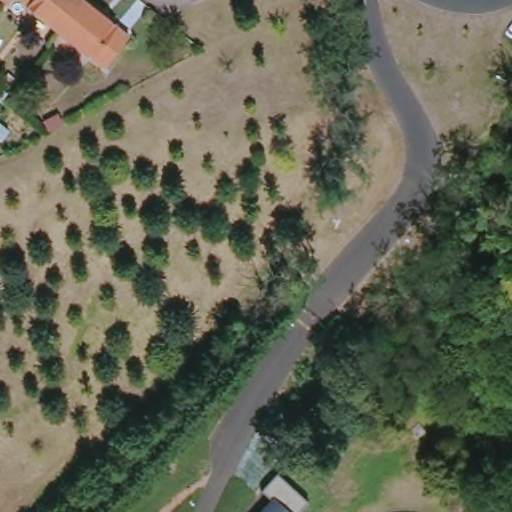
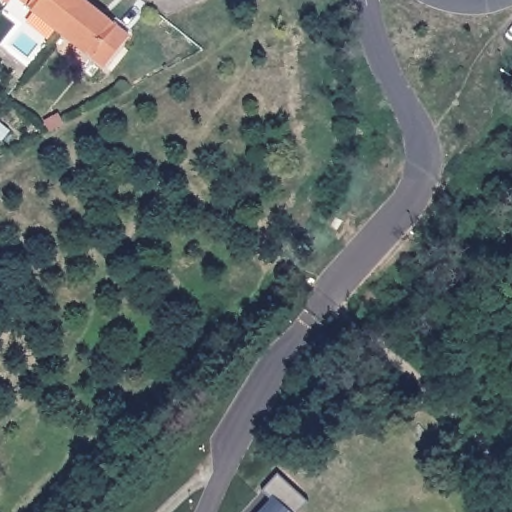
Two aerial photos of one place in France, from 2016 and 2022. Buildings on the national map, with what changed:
unchanged [(33,0),(86,0),(65,26),(33,0)]
unchanged [(94,0),(133,31),(109,61),(65,26),(86,0),(94,0)]
unchanged [(272,503),(283,512),(265,512),(272,503)]

